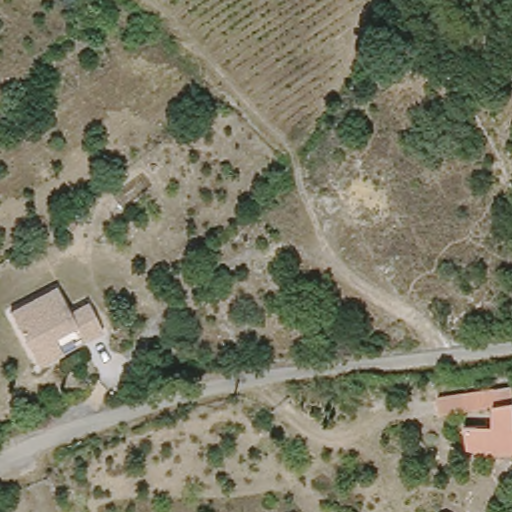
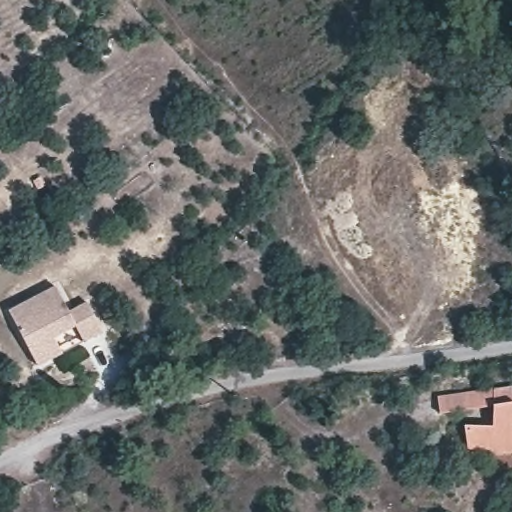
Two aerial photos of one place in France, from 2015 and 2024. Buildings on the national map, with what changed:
unchanged [(31,365),(5,318),(21,310),(52,293),(66,318),(84,308),(99,336),(80,346),(35,371),(31,365)]
unchanged [(471,444),(470,422),(498,423),(501,403),(445,409),(443,392),(512,384),(512,448),(497,450),(471,444)]

